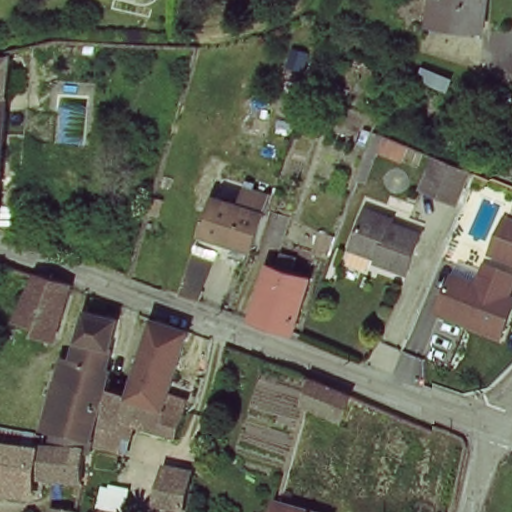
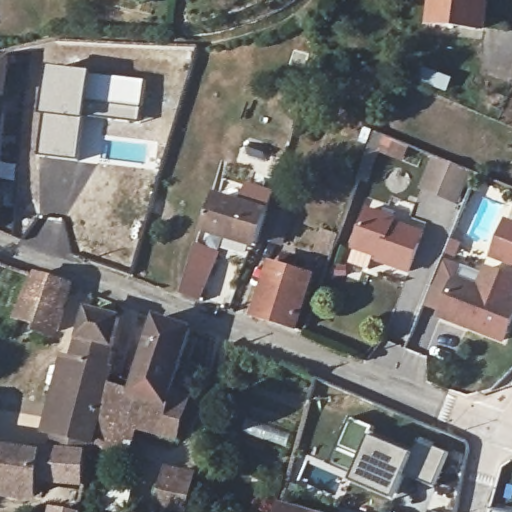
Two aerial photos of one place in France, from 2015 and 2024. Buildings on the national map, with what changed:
unchanged [(430,30),(433,0),(486,0),(483,34),(430,30)]
unchanged [(4,56),(4,50),(8,49),(0,171),(0,57),(4,56)]
new [(47,65),(91,71),(86,117),(79,162),(39,159),(47,65)]
new [(91,71),(145,78),(139,122),(86,117),(91,71)]
unchanged [(374,131),(382,135),(364,185),(355,182),(374,131)]
unchanged [(420,193),(434,157),(471,173),(457,209),(420,193)]
unchanged [(257,197),(243,245),(191,230),(200,202),(227,210),(232,189),(257,197)]
unchanged [(266,242),(251,238),(259,212),(274,216),(266,242)]
unchanged [(345,267),(351,253),(365,212),(390,221),(389,225),(419,236),(404,277),(374,266),(375,262),(370,260),(365,275),(345,267)]
unchanged [(508,226),(512,227),(512,268),(495,261),(508,226)]
unchanged [(274,266),(314,277),(296,331),(258,318),(274,266)]
unchanged [(177,294),(184,269),(200,275),(192,300),(177,294)]
unchanged [(512,298),(510,303),(512,304),(512,323),(504,344),(467,329),(469,324),(443,314),(457,282),(480,291),(487,271),(512,281),(512,298)]
unchanged [(57,332),(15,318),(33,276),(34,274),(68,284),(67,287),(57,332)]
unchanged [(65,396),(90,306),(121,313),(109,361),(113,362),(99,412),(93,439),(91,449),(85,448),(85,445),(55,442),(65,396)]
unchanged [(123,374),(126,353),(144,357),(158,313),(192,326),(160,394),(136,385),(138,378),(135,377),(123,374)]
demolished [(311,399),(316,376),(355,392),(350,403),(345,415),(311,399)]
unchanged [(119,446),(98,441),(106,414),(115,381),(136,385),(160,394),(188,402),(180,434),(127,419),(126,423),(119,446)]
new [(350,418),(374,428),(372,433),(415,450),(419,441),(447,453),(434,487),(404,476),(394,501),(352,481),(354,475),(331,466),(350,418)]
unchanged [(30,440),(22,438),(0,434),(0,421),(41,429),(38,441),(30,440)]
unchanged [(39,476),(36,491),(0,485),(0,442),(37,447),(38,441),(55,442),(85,445),(85,448),(82,480),(39,476)]
unchanged [(166,503),(171,476),(200,481),(196,508),(166,503)]
unchanged [(295,512),(276,512),(277,507),(295,512)]

